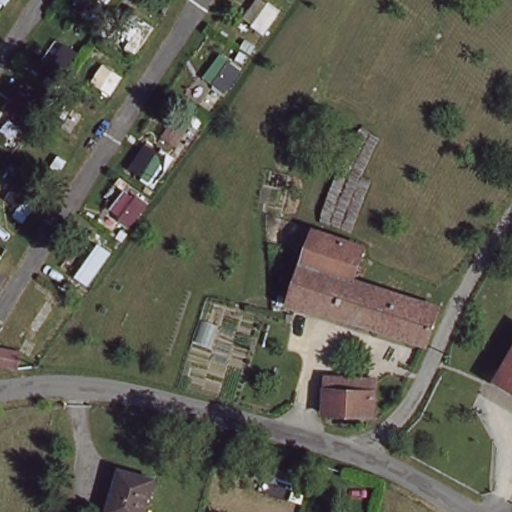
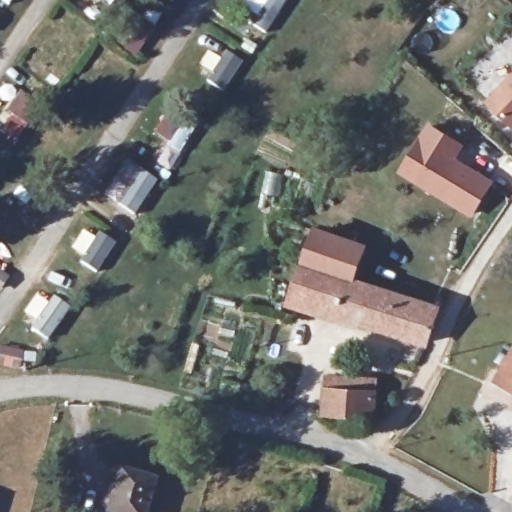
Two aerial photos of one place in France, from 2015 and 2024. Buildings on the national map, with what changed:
new [(512,75),(512,126),(487,102),(512,75)]
new [(470,217),(398,173),(427,123),(465,145),(456,159),(495,180),(470,217)]
unchanged [(365,251),(363,258),(354,284),(440,312),(427,347),(295,304),(317,236),(317,235),(365,251)]
unchanged [(21,352),(17,368),(0,364),(0,348),(21,352)]
unchanged [(512,354),(512,390),(496,381),(512,354)]
unchanged [(375,384),(375,417),(362,420),(325,418),(328,382),(375,384)]
unchanged [(108,483),(116,485),(120,470),(154,480),(145,512),(112,512),(108,511),(101,509),(108,483)]

